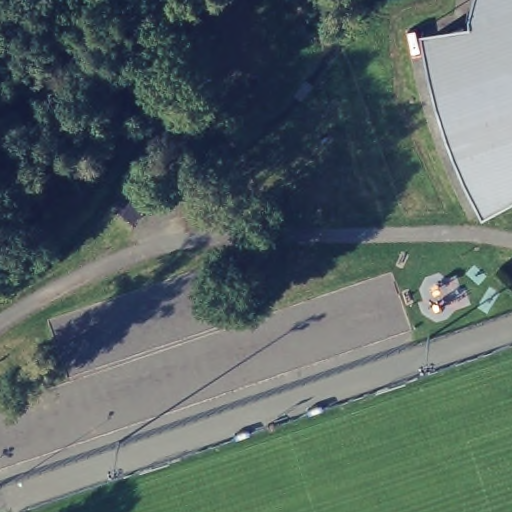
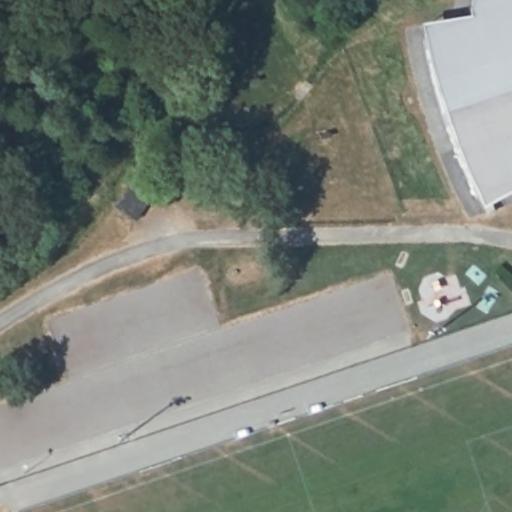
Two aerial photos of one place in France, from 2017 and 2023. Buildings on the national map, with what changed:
unchanged [(477,201),(477,199),(476,197),(474,196),(474,194),(473,192),(472,191),(471,189),(471,187),(469,185),(469,184),(468,182),(467,180),(466,178),(466,177),(464,175),(464,173),(463,171),(463,170),(461,166),(460,164),(459,163),(459,161),(458,159),(457,157),(456,156),(454,152),(454,150),(454,149),(453,147),(452,145),(451,143),(451,141),(450,140),(449,138),(449,136),(448,134),(447,132),(447,131),(446,129),(445,127),(444,125),(444,123),(442,118),(442,116),(441,114),(440,113),(439,111),(439,109),(439,107),(438,105),(437,103),(437,102),(436,100),(436,98),(435,96),(434,94),(433,89),(433,87),(432,85),(432,83),(431,81),(429,76),(429,74),(428,70),(428,68),(427,67),(427,65),(426,63),(426,61),(425,59),(425,57),(424,55),(424,54),(424,52),(423,50),(423,48),(423,46),(422,44),(422,42),(421,40),(422,28),(469,20),(466,12),(467,11),(467,10),(468,9),(468,8),(468,7),(469,7),(469,6),(469,5),(469,4),(470,2),(471,1),(471,0),(512,0),(512,195),(485,210),(477,201)]
unchanged [(153,204),(141,222),(122,210),(134,192),(153,204)]

